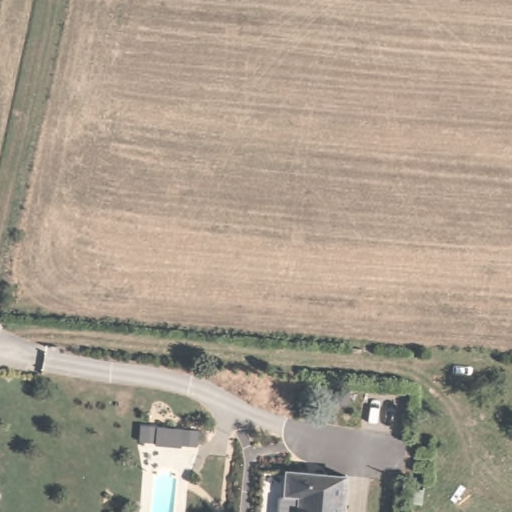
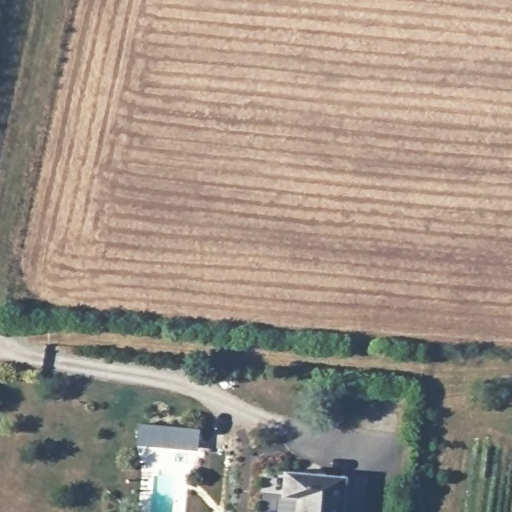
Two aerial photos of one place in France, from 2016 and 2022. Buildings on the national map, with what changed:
unchanged [(267,485),(269,467),(329,474),(325,512),(281,512),(283,486),(267,485)]

